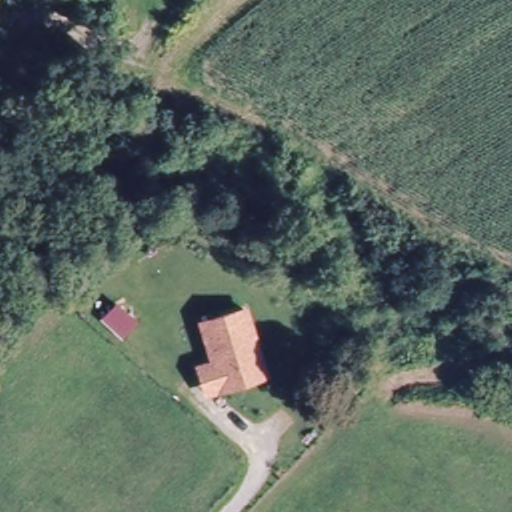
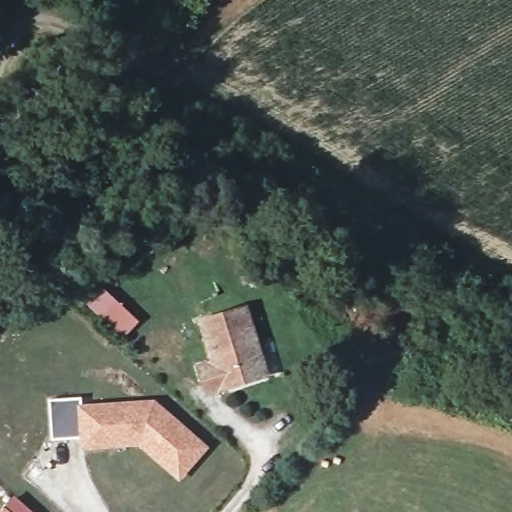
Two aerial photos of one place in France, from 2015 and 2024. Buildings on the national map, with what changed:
new [(123,339),(84,301),(100,284),(140,322),(123,339)]
unchanged [(247,305),(270,376),(203,398),(195,365),(209,361),(197,322),(247,305)]
new [(179,481),(139,446),(81,450),(80,438),(52,440),(49,400),(81,398),(81,405),(155,400),(210,447),(179,481)]
new [(11,512),(0,512),(0,510),(5,506),(11,512)]

